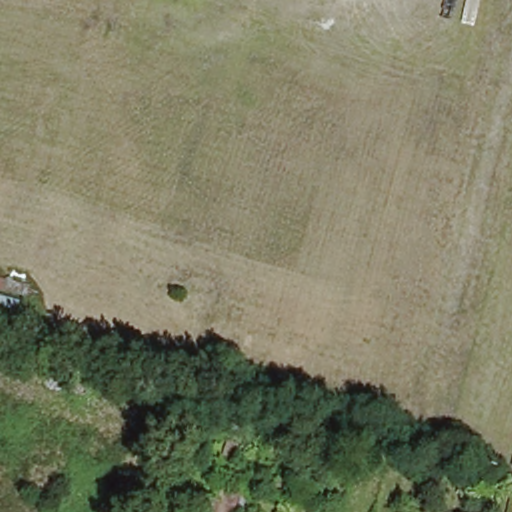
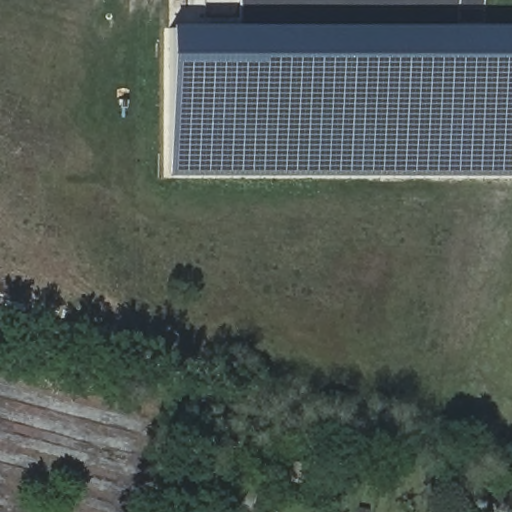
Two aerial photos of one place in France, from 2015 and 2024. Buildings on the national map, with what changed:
new [(512,25),(512,176),(170,176),(169,26),(512,25)]
unchanged [(318,451),(329,418),(356,424),(344,460),(318,451)]
unchanged [(241,506),(239,512),(189,512),(194,494),(241,506)]

